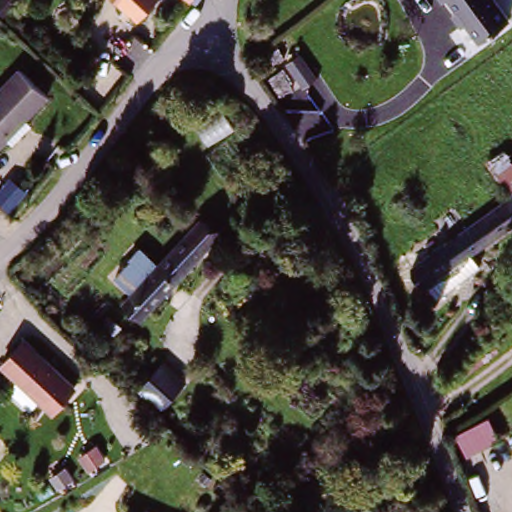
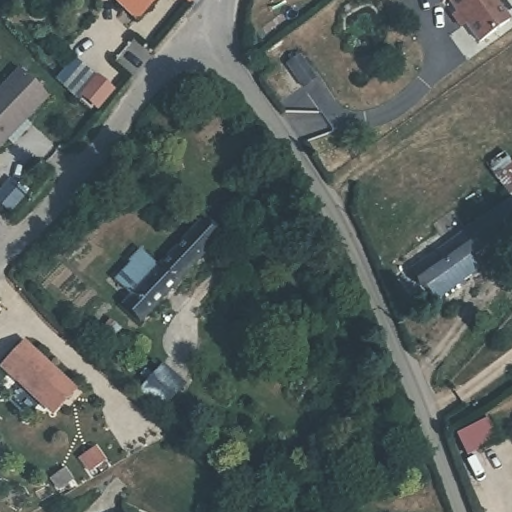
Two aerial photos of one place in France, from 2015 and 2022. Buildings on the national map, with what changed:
unchanged [(145,27),(114,0),(160,0),(165,5),(150,22),(145,27)]
unchanged [(512,18),(481,41),(450,0),(498,0),(512,18)]
unchanged [(0,141),(0,82),(12,70),(42,97),(0,141)]
unchanged [(484,157),(499,148),(512,170),(512,205),(510,202),(484,157)]
unchanged [(0,201),(0,181),(8,174),(23,189),(4,205),(0,201)]
unchanged [(512,205),(512,229),(473,252),(461,231),(510,202),(512,205)]
unchanged [(142,247),(160,263),(202,221),(219,237),(140,317),(122,301),(130,292),(114,276),(142,247)]
unchanged [(473,252),(461,258),(424,280),(412,260),(461,231),(473,252)]
unchanged [(412,286),(401,265),(412,260),(424,280),(461,258),(470,273),(424,302),(415,285),(412,286)]
unchanged [(58,412),(7,363),(30,341),(80,390),(58,412)]
unchanged [(165,367),(186,386),(171,403),(150,384),(165,367)]

